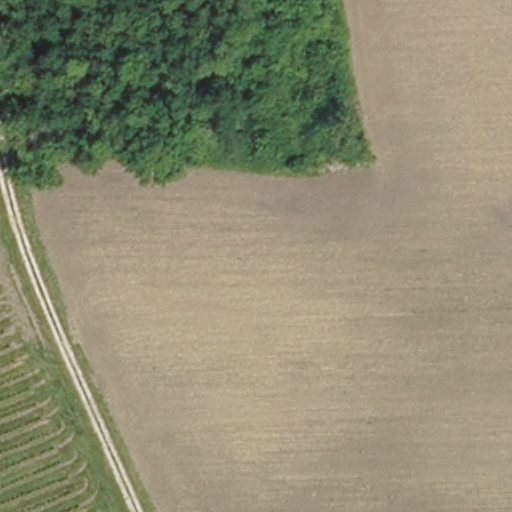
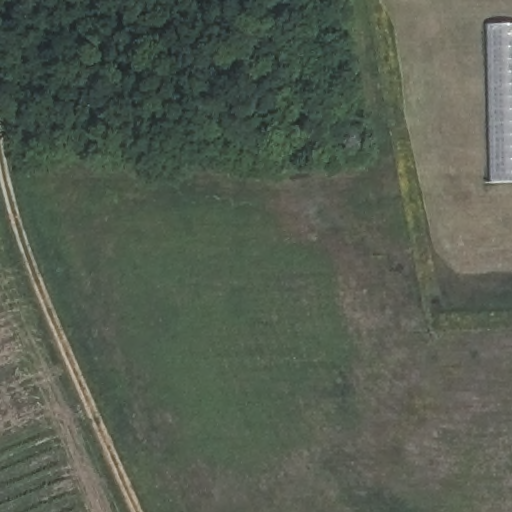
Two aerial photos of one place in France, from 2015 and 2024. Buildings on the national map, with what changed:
new [(489,183),(485,25),(512,24),(512,183),(489,183)]

